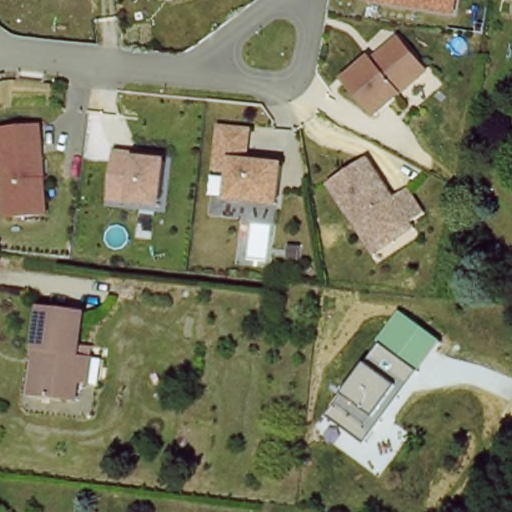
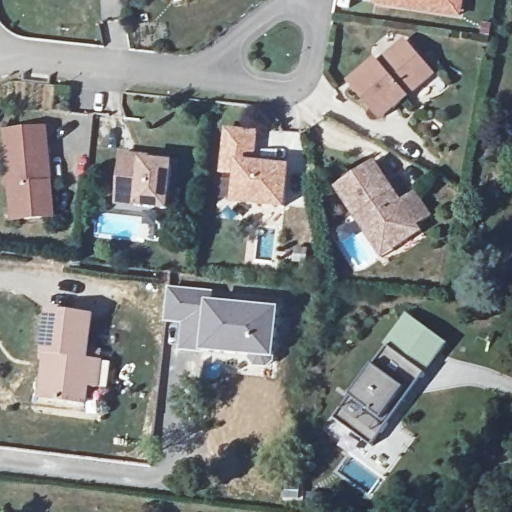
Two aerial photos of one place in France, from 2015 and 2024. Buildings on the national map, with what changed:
unchanged [(411,11),(385,7),(377,5),(377,0),(464,0),(463,6),(460,20),(411,11)]
unchanged [(375,60),(377,62),(378,63),(405,41),(432,73),(381,116),(372,105),(351,80),(375,60)]
unchanged [(47,128),(52,223),(11,224),(3,131),(47,128)]
unchanged [(259,134),(255,165),(292,170),(287,207),(238,202),(241,174),(226,172),(231,131),(259,134)]
unchanged [(142,161),(142,165),(170,169),(165,210),(115,204),(121,158),(142,161)]
unchanged [(377,255),(357,224),(350,213),(333,184),(365,164),(373,158),(399,199),(414,190),(429,213),(414,222),(418,228),(377,255)]
new [(167,285),(214,290),(213,300),(281,308),(276,362),(177,352),(179,325),(163,323),(167,285)]
unchanged [(46,364),(52,311),(97,315),(93,356),(97,358),(91,407),(53,402),(41,401),(46,364)]
unchanged [(411,314),(451,343),(375,447),(338,419),(411,314)]

